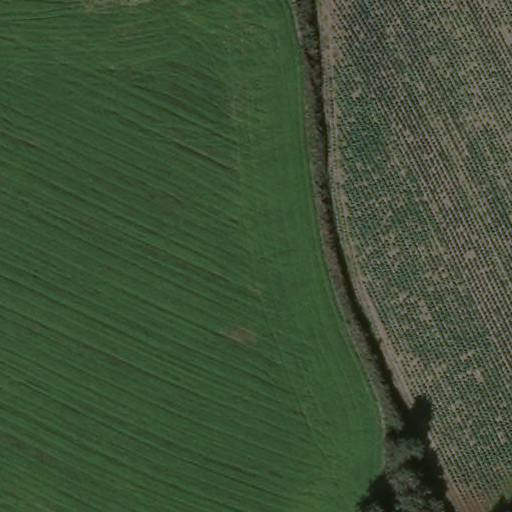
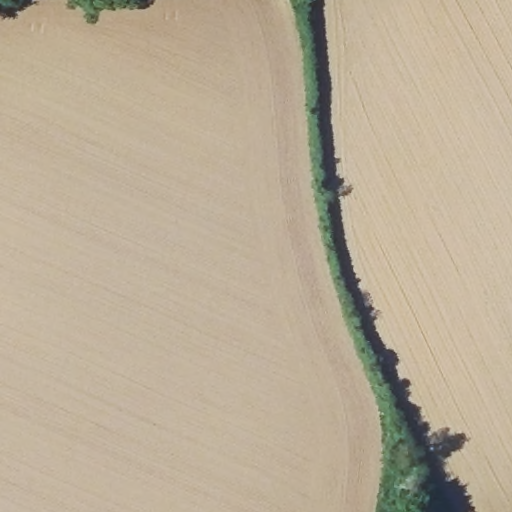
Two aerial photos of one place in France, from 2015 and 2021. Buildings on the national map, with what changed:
[]

